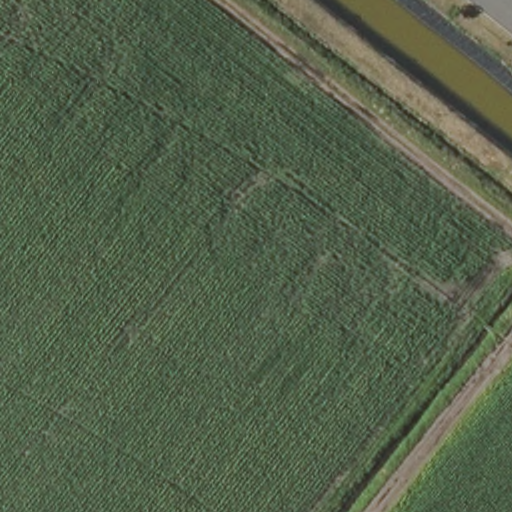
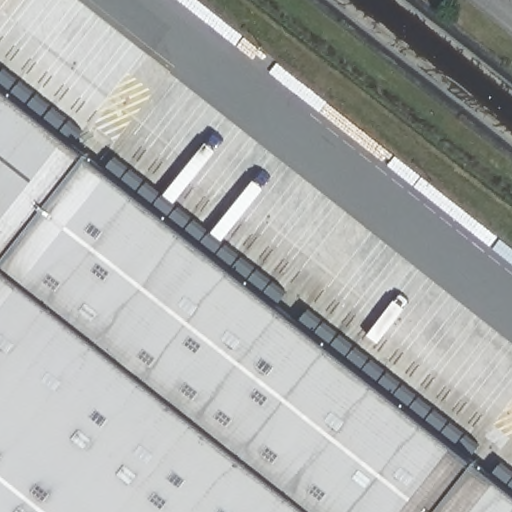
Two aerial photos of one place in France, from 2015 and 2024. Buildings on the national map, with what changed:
new [(89,158),(4,269),(0,273),(0,88),(89,158)]
new [(89,158),(512,493),(512,512),(0,512),(0,273),(4,269),(89,158)]

